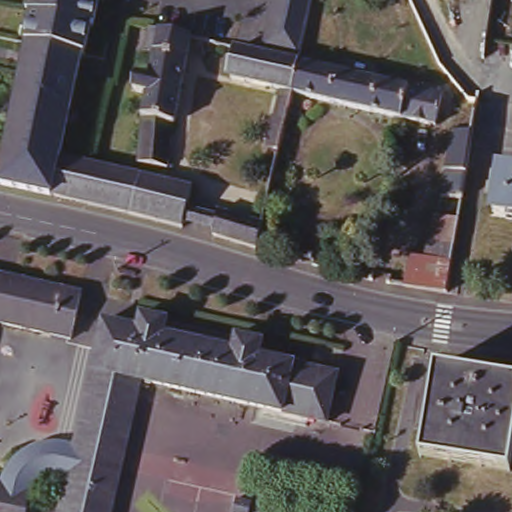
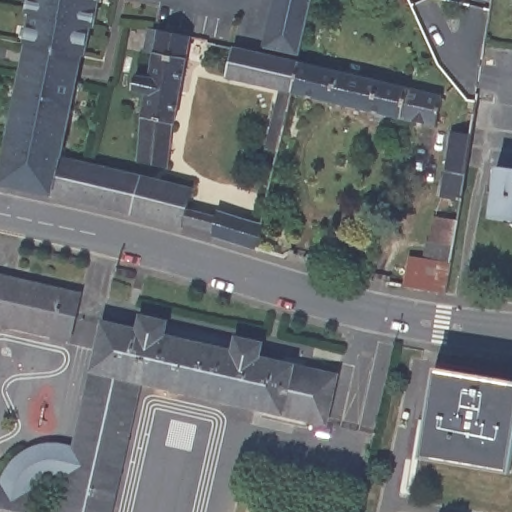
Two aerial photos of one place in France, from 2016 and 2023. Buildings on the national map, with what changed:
unchanged [(97,22),(94,21),(88,50),(85,50),(66,151),(55,191),(2,180),(31,39),(28,39),(34,9),(31,8),(33,0),(101,0),(97,22)]
unchanged [(270,47),(280,0),(319,0),(306,55),(270,47)]
unchanged [(197,30),(172,161),(142,156),(143,147),(145,120),(151,89),(142,86),(138,80),(139,76),(146,70),(155,72),(159,49),(150,47),(155,21),(192,30),(197,30)]
unchanged [(305,61),(299,92),(286,150),(271,147),(284,89),(236,78),(239,62),(209,55),(212,39),(305,61)]
unchanged [(442,126),(408,118),(299,92),(305,61),(448,96),(442,126)]
unchanged [(465,153),(443,293),(399,286),(405,257),(420,260),(423,241),(426,241),(433,196),(437,196),(452,95),(474,99),(470,120),(465,153)]
unchanged [(66,151),(78,154),(197,182),(187,222),(55,191),(66,151)]
unchanged [(512,171),(512,220),(490,217),(496,170),(512,171)]
unchanged [(218,232),(222,205),(253,213),(258,191),(275,195),(264,244),(218,232)]
unchanged [(80,297),(70,342),(0,327),(0,279),(80,297)]
unchanged [(63,476),(59,476),(65,447),(76,450),(103,324),(138,332),(142,318),(262,345),(260,360),(337,378),(327,426),(140,384),(112,512),(61,512),(69,477),(63,476)]
unchanged [(512,379),(512,447),(508,470),(419,452),(435,365),(512,379)]
unchanged [(57,476),(53,477),(48,479),(43,482),(38,485),(35,488),(33,491),(31,495),(28,512),(0,512),(0,487),(3,481),(6,475),(10,470),(16,464),(23,458),(29,455),(33,452),(37,450),(43,448),(46,447),(50,446),(53,446),(58,447),(65,447),(59,476),(57,476)]

